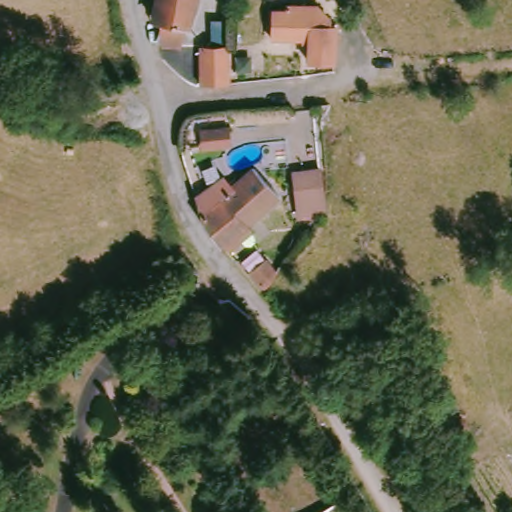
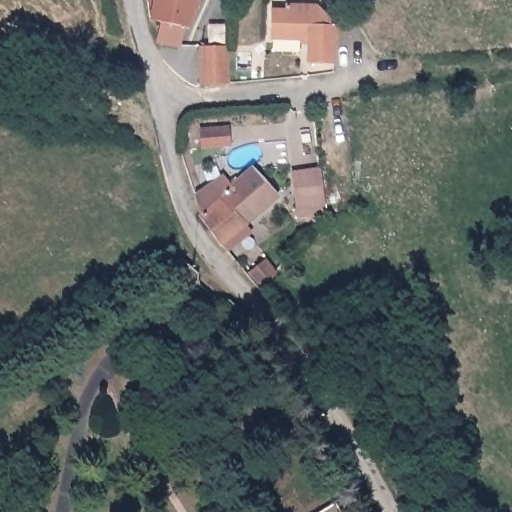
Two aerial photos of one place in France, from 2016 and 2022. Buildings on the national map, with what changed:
unchanged [(160,42),(159,32),(160,21),(155,20),(156,0),(195,0),(187,27),(185,27),(178,44),(162,43),(160,42)]
unchanged [(308,65),(310,41),(272,38),(273,11),(288,12),(288,7),(320,10),(332,24),(332,29),(337,29),(333,66),(308,65)]
unchanged [(200,85),(200,46),(227,46),(228,84),(200,85)]
unchanged [(251,63),(251,71),(237,71),(237,57),(245,57),(251,63)]
unchanged [(228,127),(229,145),(202,147),(201,130),(228,127)]
unchanged [(232,187),(254,167),(278,195),(220,244),(201,217),(222,200),(232,187)]
unchanged [(320,170),(326,207),(298,210),(293,173),(320,170)]
unchanged [(248,272),(265,260),(278,276),(262,290),(248,272)]
unchanged [(335,502),(341,512),(319,512),(335,502)]

